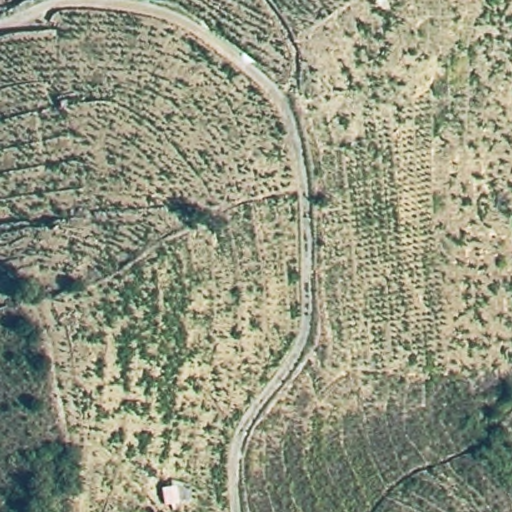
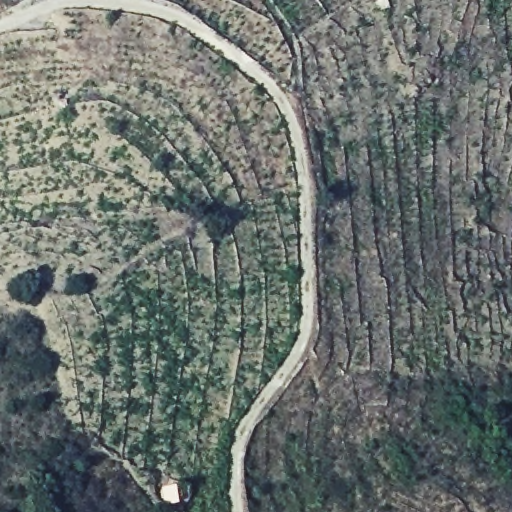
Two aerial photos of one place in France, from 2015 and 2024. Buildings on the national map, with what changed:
unchanged [(183,491),(183,508),(166,510),(166,492),(183,491)]

